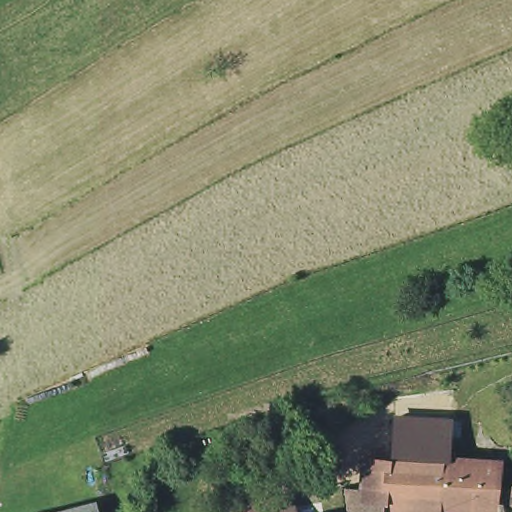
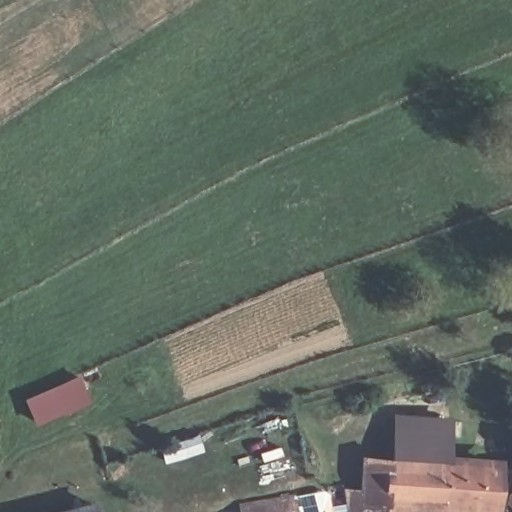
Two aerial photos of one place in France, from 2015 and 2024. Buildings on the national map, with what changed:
new [(79,376),(91,402),(37,423),(27,399),(79,376)]
unchanged [(351,486),(366,491),(366,455),(396,455),(397,412),(448,412),(448,451),(455,451),(455,456),(469,456),(468,494),(444,492),(442,512),(355,512),(351,486)]
unchanged [(502,456),(501,495),(468,494),(469,456),(502,456)]
unchanged [(294,495),(297,512),(241,512),(240,506),(294,495)]
unchanged [(98,506),(99,512),(72,512),(98,506)]

